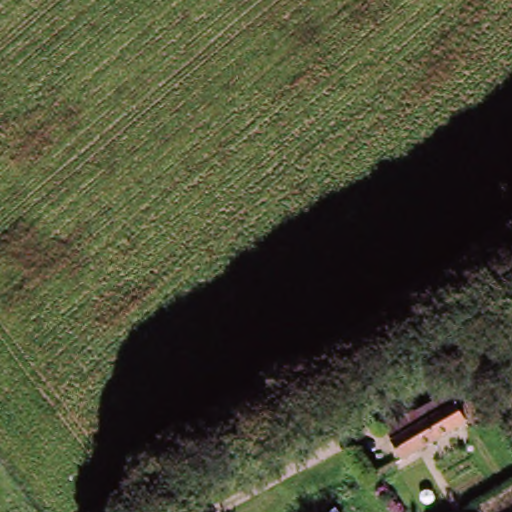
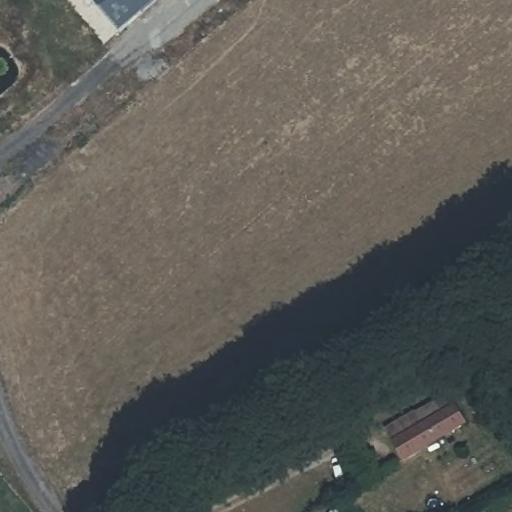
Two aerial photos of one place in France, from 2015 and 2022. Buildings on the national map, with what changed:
new [(91,0),(159,0),(119,34),(91,0)]
unchanged [(409,468),(396,447),(427,427),(419,417),(436,406),(450,397),(457,408),(470,430),(409,468)]

